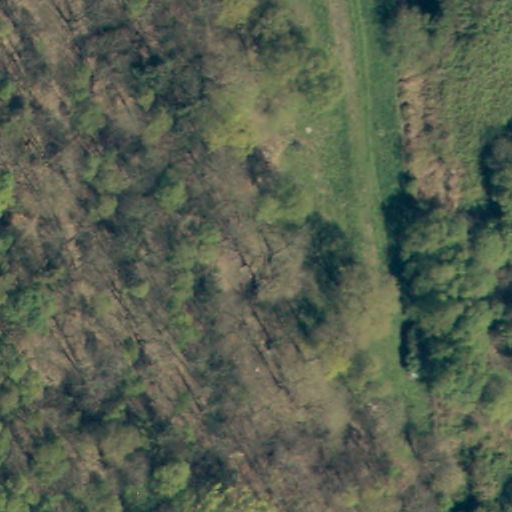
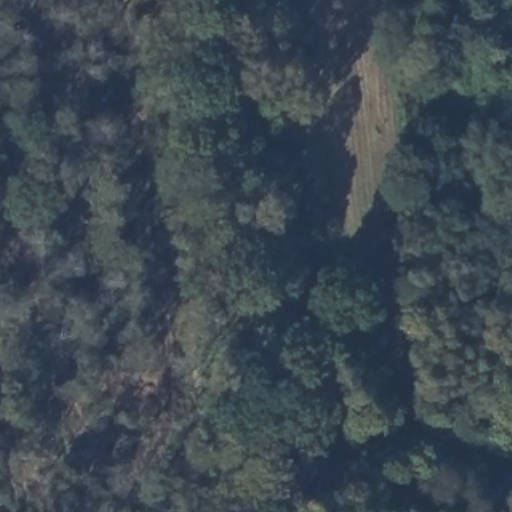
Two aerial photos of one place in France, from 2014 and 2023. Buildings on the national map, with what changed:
unchanged [(406,336),(421,334),(431,333),(433,368),(423,368),(409,369),(406,336)]

